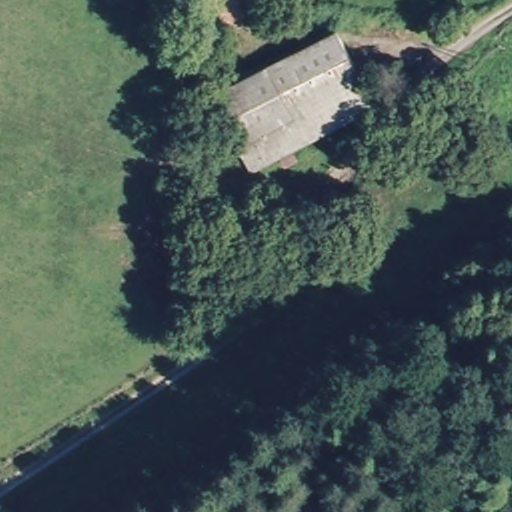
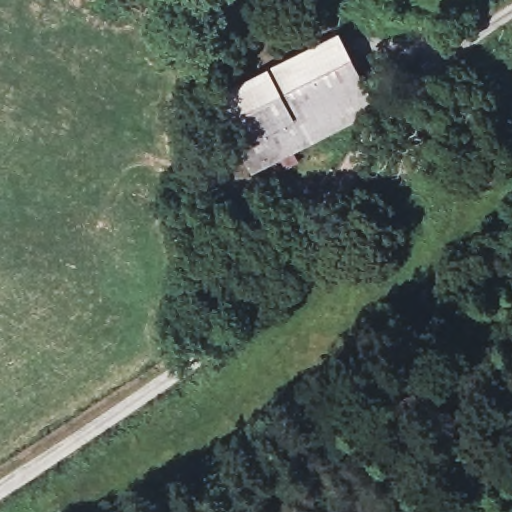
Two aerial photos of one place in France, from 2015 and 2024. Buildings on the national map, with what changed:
unchanged [(227,0),(241,5),(244,6),(237,25),(198,12),(202,0),(227,0)]
unchanged [(240,161),(217,78),(350,36),(376,118),(240,161)]

